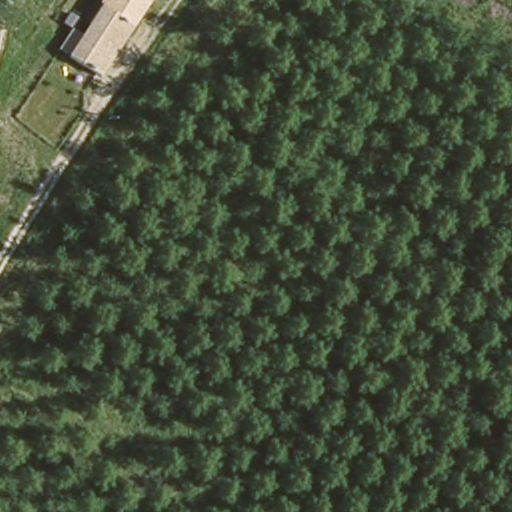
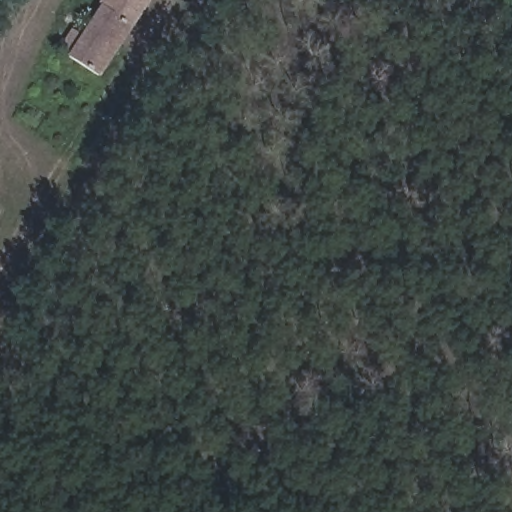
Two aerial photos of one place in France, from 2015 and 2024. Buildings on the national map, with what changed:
unchanged [(65,63),(103,0),(146,0),(93,82),(65,63)]

